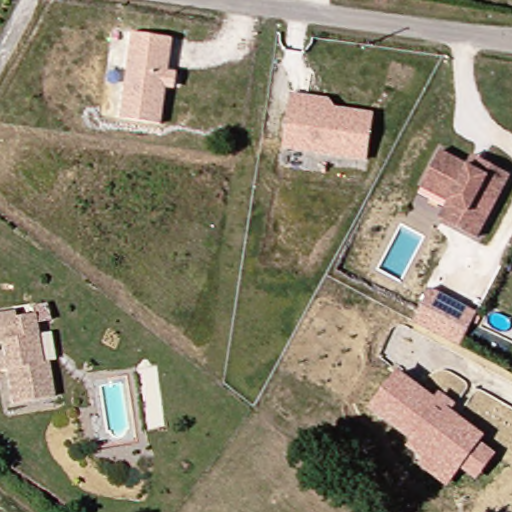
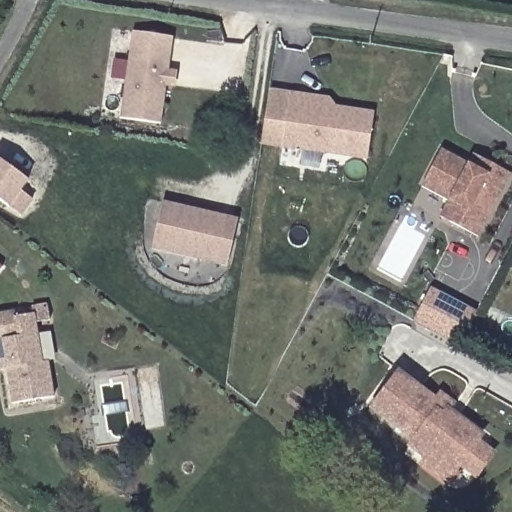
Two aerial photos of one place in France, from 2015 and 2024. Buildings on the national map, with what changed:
unchanged [(165,122),(120,116),(134,34),(177,37),(165,122)]
unchanged [(368,159),(283,146),(288,112),(291,94),(309,96),(329,99),(335,108),(375,114),(372,128),(368,159)]
unchanged [(467,161),(473,152),(483,157),(510,172),(477,234),(439,213),(448,197),(428,187),(421,183),(430,167),(441,147),(467,161)]
new [(21,216),(9,207),(0,200),(0,160),(30,181),(21,191),(32,200),(21,216)]
new [(227,267),(150,250),(162,201),(238,217),(227,267)]
unchanged [(478,309),(461,343),(416,322),(431,285),(478,309)]
unchanged [(20,313),(21,317),(40,314),(48,362),(55,362),(60,398),(20,404),(10,342),(0,343),(0,316),(20,313)]
unchanged [(439,397),(443,392),(458,403),(457,407),(487,432),(483,437),(500,452),(480,479),(465,469),(451,486),(420,465),(423,459),(408,446),(412,438),(370,408),(396,367),(439,397)]

